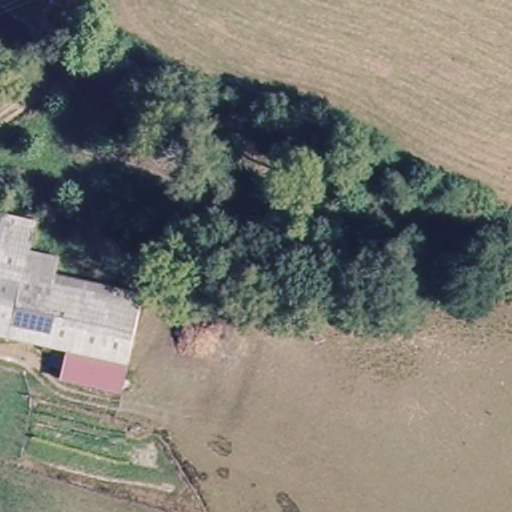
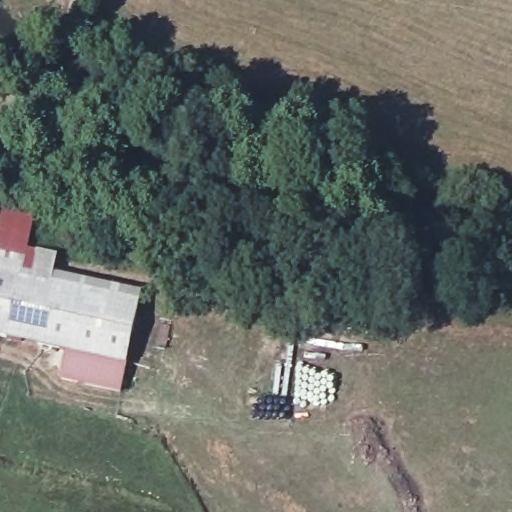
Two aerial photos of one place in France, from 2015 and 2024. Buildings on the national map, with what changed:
unchanged [(7,220),(39,226),(5,345),(0,344),(0,248),(6,228),(7,220)]
unchanged [(146,292),(134,364),(116,361),(79,355),(18,341),(25,287),(56,291),(60,275),(88,280),(146,292)]
unchanged [(130,391),(73,381),(75,371),(79,355),(116,361),(134,364),(132,381),(130,391)]

